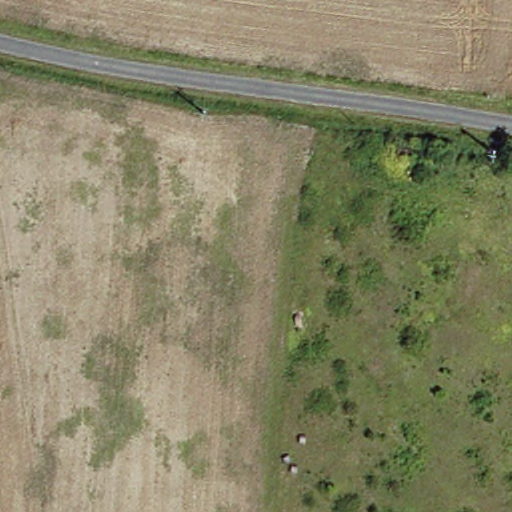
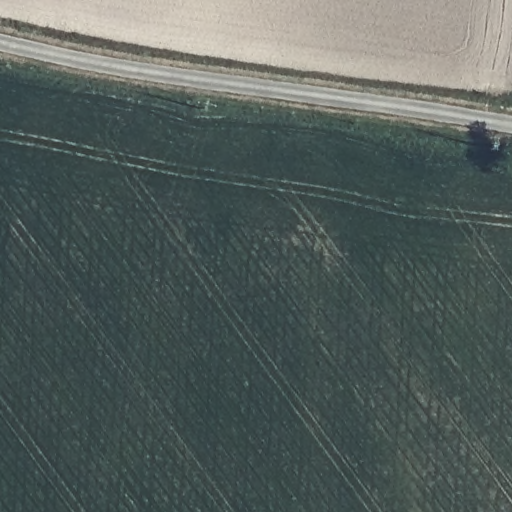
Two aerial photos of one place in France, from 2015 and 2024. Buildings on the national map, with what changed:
unchanged [(420,160),(421,147),(433,148),(432,161),(420,160)]

